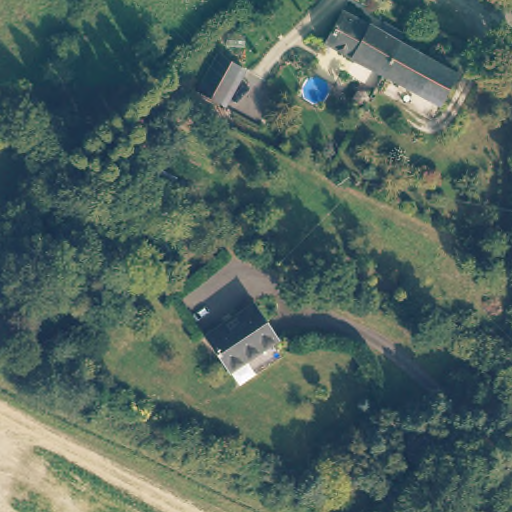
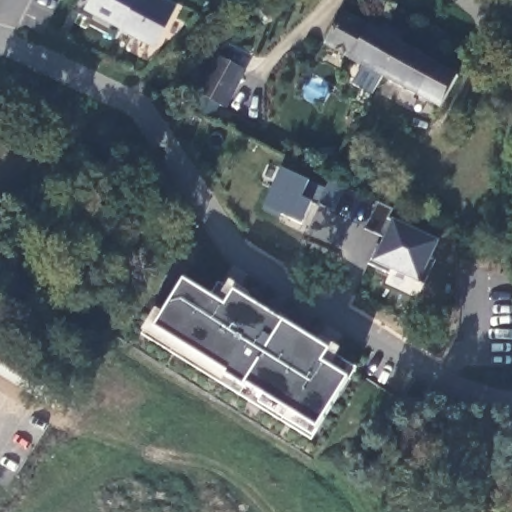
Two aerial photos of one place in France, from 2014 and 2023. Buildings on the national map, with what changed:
new [(88,0),(176,0),(154,43),(85,7),(88,0)]
unchanged [(405,40),(385,75),(330,44),(348,10),(405,40)]
unchanged [(460,70),(453,84),(444,106),(385,75),(405,40),(460,70)]
unchanged [(242,72),(222,110),(197,96),(217,59),(242,72)]
new [(390,218),(438,241),(420,283),(373,262),(386,235),(366,225),(377,201),(394,208),(390,218)]
new [(219,301),(231,280),(252,293),(249,299),(317,343),(321,337),(341,351),(331,368),(347,379),(318,427),(313,435),(260,401),(263,395),(245,383),(244,386),(226,376),(222,380),(142,330),(155,308),(165,312),(185,280),(219,301)]
demolished [(227,372),(204,338),(253,306),(276,338),(227,372)]

